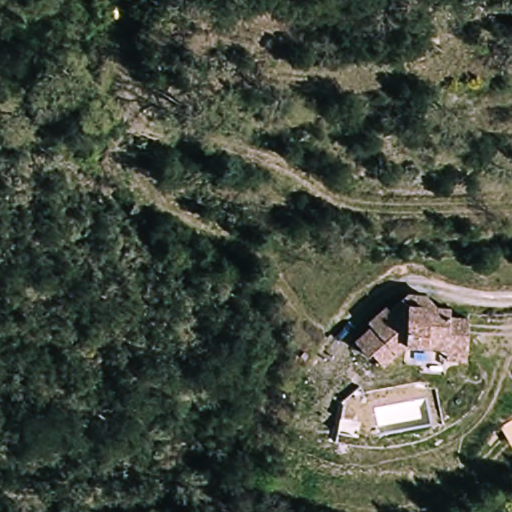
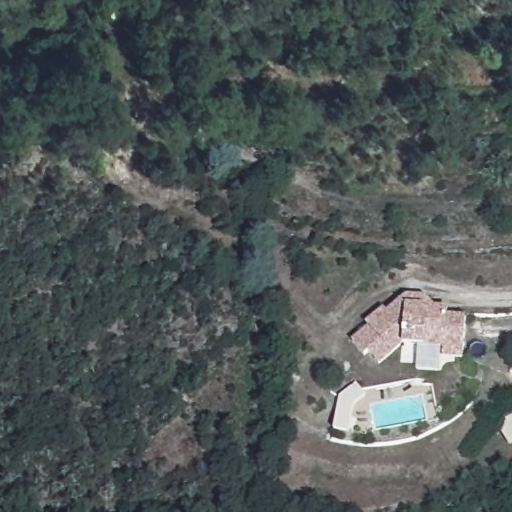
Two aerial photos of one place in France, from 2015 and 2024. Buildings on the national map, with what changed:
unchanged [(436,307),(449,307),(449,316),(467,316),(467,361),(445,361),(445,347),(428,347),(414,360),(404,348),(380,370),(353,342),(368,328),(365,325),(381,308),(386,314),(405,296),(429,296),(436,307)]

